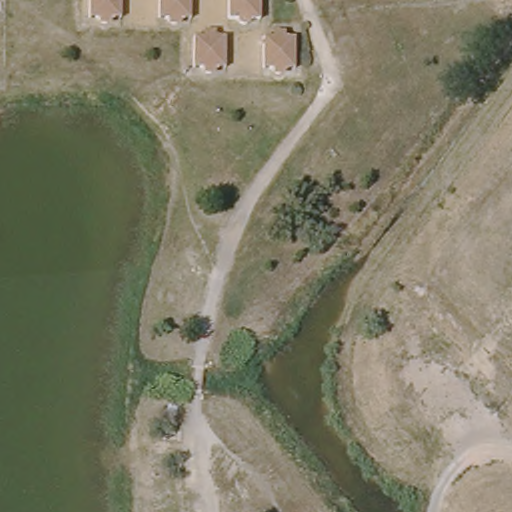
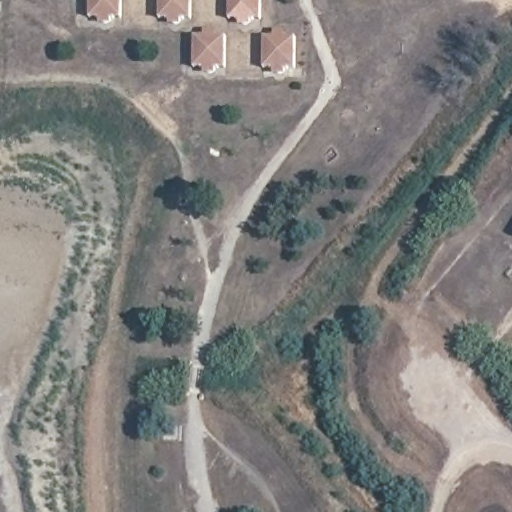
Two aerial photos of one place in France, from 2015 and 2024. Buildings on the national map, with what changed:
unchanged [(126,19),(116,19),(116,20),(115,22),(112,24),(109,24),(106,22),(105,20),(105,19),(95,18),(95,0),(126,0),(126,19)]
unchanged [(191,19),(181,19),(181,20),(180,23),(177,25),(174,25),(171,23),(170,20),(170,19),(160,19),(160,0),(191,0),(191,19)]
unchanged [(261,15),(250,15),(250,16),(249,19),(246,20),(243,20),(241,19),(239,16),(239,15),(229,15),(229,0),(261,0),(261,15)]
unchanged [(279,32),(279,30),(280,28),(283,26),(286,26),(289,28),(290,31),(290,32),(300,32),(300,64),(290,64),(290,65),(288,68),(286,70),(283,70),(280,68),(278,65),(279,64),(268,64),(269,32),(279,32)]
unchanged [(209,36),(209,35),(211,32),(214,31),(217,31),(219,32),(221,35),(221,36),(231,36),(231,68),(221,68),(221,70),(219,72),(216,74),(213,74),(211,72),(209,70),(209,68),(199,68),(199,36),(209,36)]

